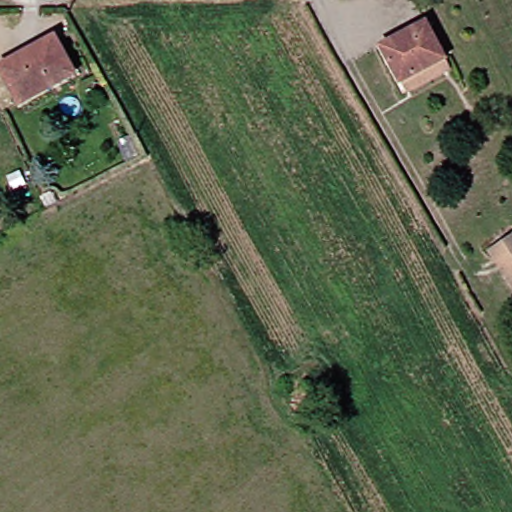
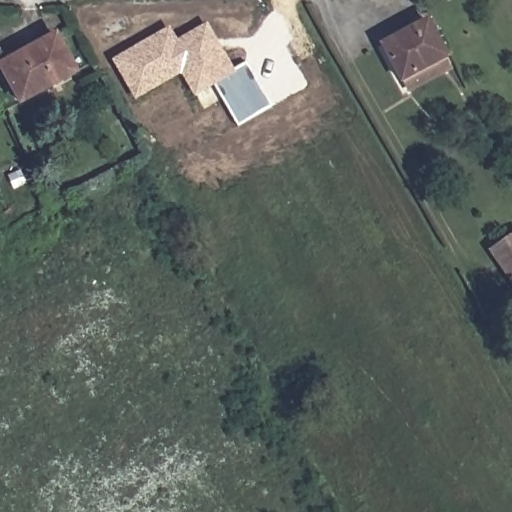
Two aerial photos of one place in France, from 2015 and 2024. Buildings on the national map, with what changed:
new [(178,40),(206,23),(233,70),(245,62),(271,108),(237,126),(214,86),(194,97),(181,75),(134,102),(110,61),(168,28),(178,40)]
unchanged [(440,57),(393,83),(376,51),(424,25),(440,57)]
unchanged [(68,72),(11,103),(0,83),(0,61),(48,35),(68,72)]
unchanged [(482,255),(512,233),(512,294),(504,284),(482,255)]
unchanged [(278,394),(287,408),(269,421),(259,407),(278,394)]

